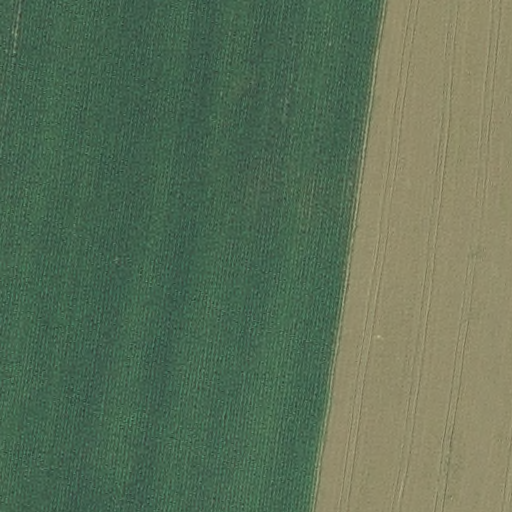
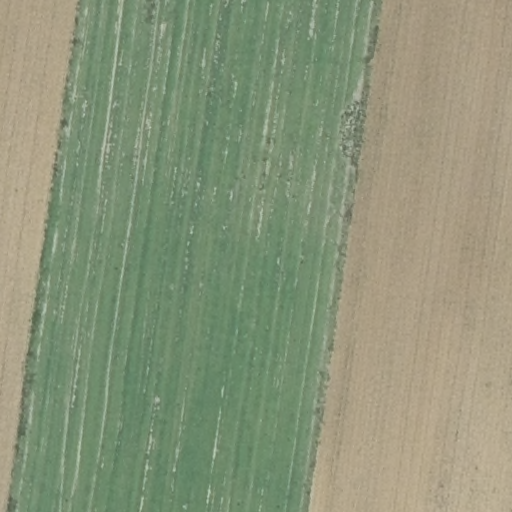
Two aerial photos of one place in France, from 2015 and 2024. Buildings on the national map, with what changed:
[]

